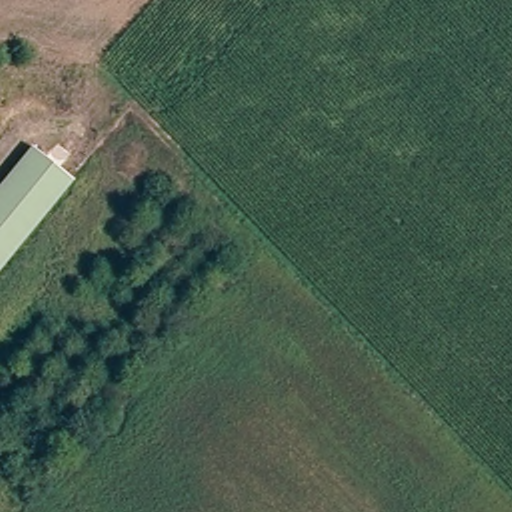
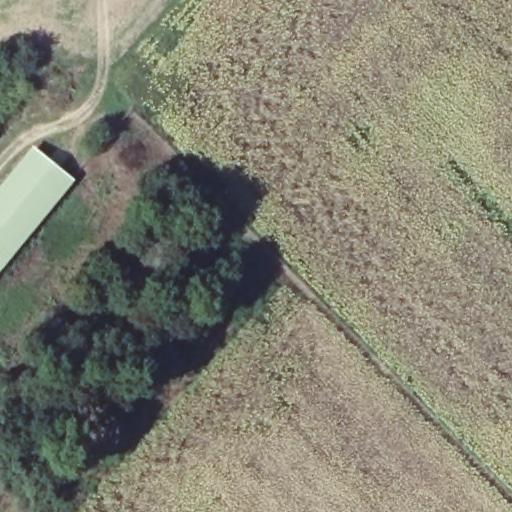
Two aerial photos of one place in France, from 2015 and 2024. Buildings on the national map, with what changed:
unchanged [(0,268),(0,186),(31,148),(71,179),(0,268)]

